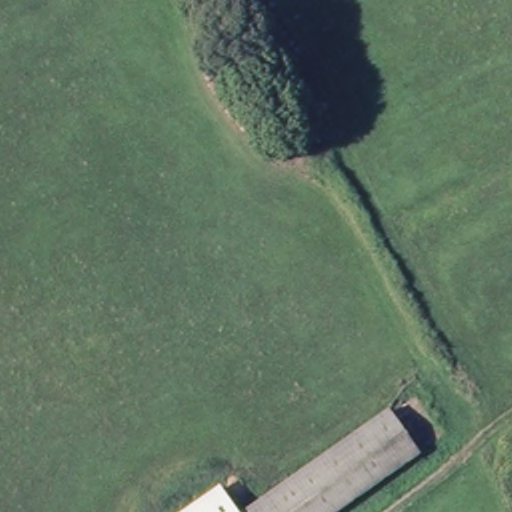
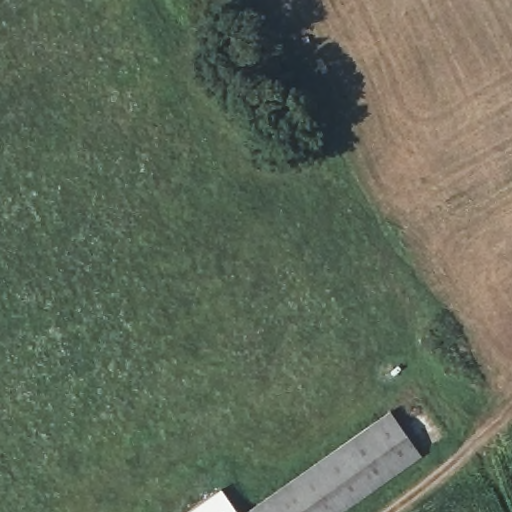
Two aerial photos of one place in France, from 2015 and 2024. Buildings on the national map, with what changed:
unchanged [(386,416),(415,459),(377,485),(346,444),(386,416)]
unchanged [(377,485),(336,512),(241,512),(346,444),(377,485)]
unchanged [(239,512),(180,512),(220,486),(239,512)]

